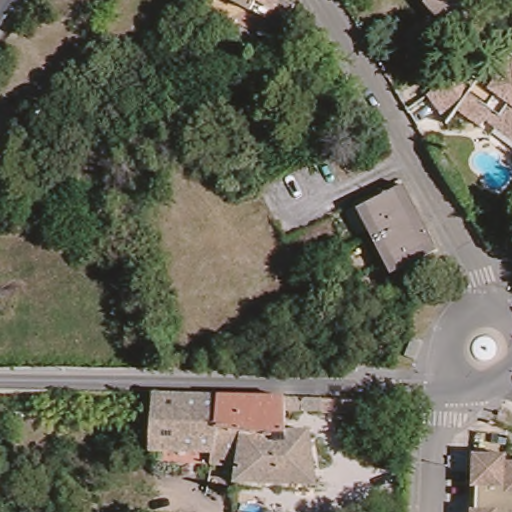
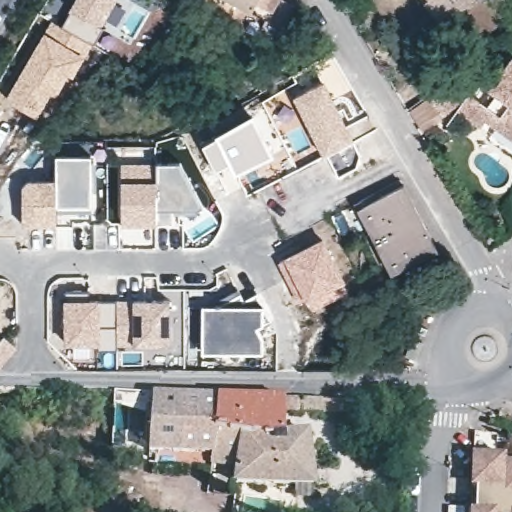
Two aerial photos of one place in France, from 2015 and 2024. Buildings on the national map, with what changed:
new [(69,75),(55,95),(52,93),(37,116),(4,98),(35,44),(52,19),(60,23),(73,0),(117,0),(93,44),(72,77),(69,75)]
unchanged [(299,6),(279,44),(263,35),(271,19),(235,0),(288,0),(299,6)]
unchanged [(443,18),(427,0),(463,0),(443,18)]
new [(338,178),(326,156),(323,157),(291,97),(322,80),(313,67),(331,54),(354,90),(336,100),(356,139),(353,142),(359,165),(338,178)]
unchanged [(479,81),(474,87),(471,92),(488,105),(497,93),(491,89),(512,60),(512,139),(493,125),(500,116),(493,111),(486,119),(482,126),(458,109),(450,121),(429,92),(462,69),(468,65),(479,81)]
new [(235,175),(229,163),(216,170),(204,146),(217,138),(215,135),(254,116),(274,156),(235,175)]
new [(57,219),(57,225),(21,225),(21,180),(55,178),(55,154),(94,154),(96,147),(106,148),(105,159),(94,158),(92,208),(92,218),(57,219)]
new [(120,161),(156,161),(181,161),(205,206),(180,212),(181,226),(158,227),(120,226),(120,179),(120,161)]
unchanged [(357,204),(365,200),(404,180),(437,247),(399,266),(391,270),(357,204)]
new [(322,238),(349,291),(312,310),(306,299),(297,303),(277,262),(322,238)]
new [(170,299),(170,345),(117,348),(93,346),(73,344),(64,344),(63,297),(170,299)]
new [(201,304),(262,302),(264,352),(201,352),(201,304)]
unchanged [(175,390),(218,392),(214,433),(238,434),(235,464),(210,460),(211,450),(149,448),(153,390),(175,390)]
unchanged [(238,434),(214,433),(218,392),(316,395),(322,409),(286,408),(286,429),(310,428),(317,481),(233,479),(235,464),(238,434)]
unchanged [(477,451),(510,453),(510,460),(512,460),(512,512),(473,512),(474,506),(479,507),(480,483),(475,483),(477,451)]

